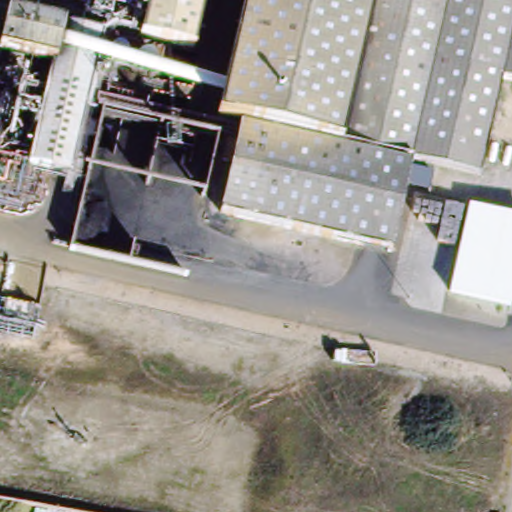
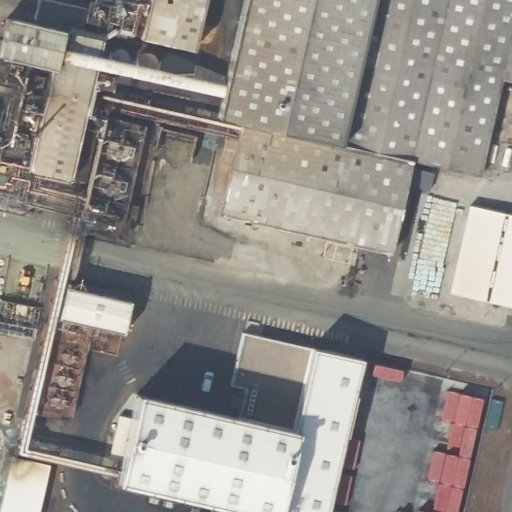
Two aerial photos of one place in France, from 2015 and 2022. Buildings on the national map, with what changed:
unchanged [(38,0),(60,0),(88,7),(81,34),(64,30),(33,23),(38,0)]
unchanged [(196,51),(140,39),(149,0),(207,0),(196,51)]
unchanged [(503,81),(482,177),(414,161),(242,121),(219,116),(245,0),(512,0),(512,82),(503,81)]
unchanged [(64,30),(81,34),(104,38),(71,180),(27,171),(51,68),(0,57),(0,43),(6,17),(33,23),(64,30)]
unchanged [(414,161),(393,255),(219,216),(242,121),(414,161)]
unchanged [(451,296),(471,205),(512,215),(512,312),(451,296)]
new [(130,301),(123,332),(60,317),(68,286),(130,301)]
new [(365,357),(328,512),(238,512),(114,488),(138,391),(240,416),(248,387),(230,382),(242,332),(310,345),(365,357)]
new [(40,512),(0,512),(0,508),(12,455),(51,464),(40,512)]

